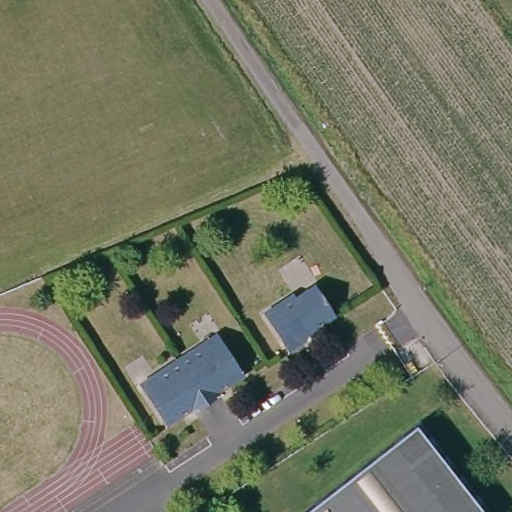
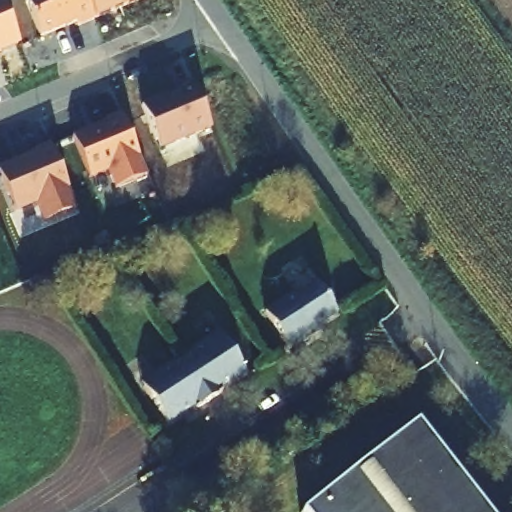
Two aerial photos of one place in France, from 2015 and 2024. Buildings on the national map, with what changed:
new [(76,26),(40,41),(23,0),(84,0),(93,24),(78,30),(76,26)]
new [(93,24),(84,0),(142,0),(143,2),(93,24)]
new [(0,7),(17,49),(0,56),(0,7)]
new [(0,60),(0,58),(1,60),(0,60)]
new [(141,111),(165,101),(166,104),(177,100),(175,96),(192,88),(211,132),(159,154),(141,111)]
new [(105,127),(104,125),(120,118),(146,181),(114,194),(107,175),(88,182),(71,141),(105,127)]
new [(43,225),(35,208),(16,217),(0,185),(0,169),(49,147),(78,211),(43,225)]
unchanged [(263,316),(294,297),(296,301),(315,288),(334,318),(302,338),(299,340),(301,344),(286,353),(284,349),(263,316)]
unchanged [(176,362),(201,347),(203,352),(218,342),(241,378),(215,395),(218,398),(211,402),(204,407),(176,362)]
unchanged [(204,407),(191,415),(188,411),(163,427),(139,391),(155,381),(153,377),(176,362),(204,407)]
unchanged [(423,426),(488,512),(309,512),(423,426)]

